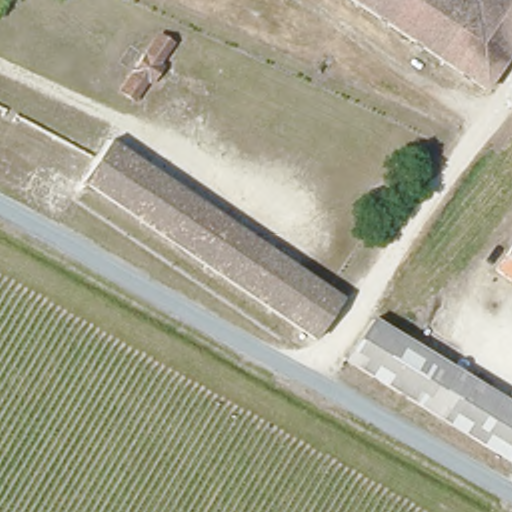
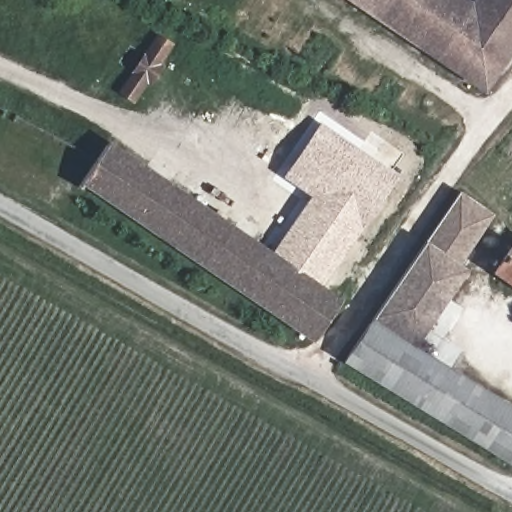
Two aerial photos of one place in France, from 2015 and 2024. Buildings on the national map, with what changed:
unchanged [(472,7),(455,33),(501,65),(482,93),(346,0),(461,0),(472,7)]
unchanged [(474,0),(512,0),(512,54),(505,64),(457,34),(460,30),(476,5),(472,2),(474,0)]
unchanged [(171,48),(160,67),(164,70),(152,88),(146,84),(135,102),(121,95),(157,39),(171,48)]
new [(271,252),(310,196),(283,176),(320,122),(398,175),(321,287),(271,252)]
unchanged [(316,341),(88,183),(91,178),(115,143),(345,303),(316,341)]
new [(426,241),(460,190),(494,213),(460,263),(467,268),(413,346),(374,321),(426,241)]
unchanged [(493,270),(512,244),(512,283),(493,270)]
unchanged [(348,360),(374,321),(413,346),(512,409),(512,466),(347,360),(348,360)]

